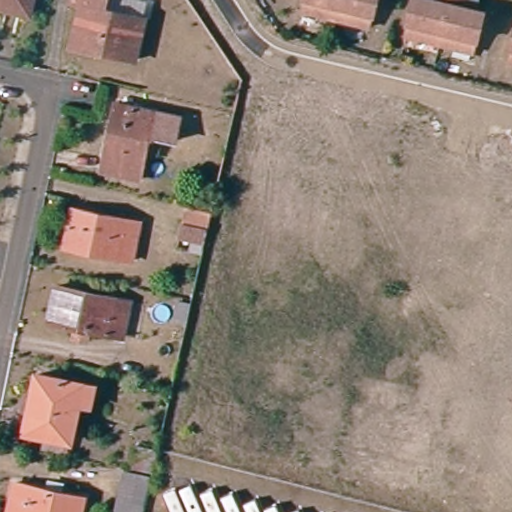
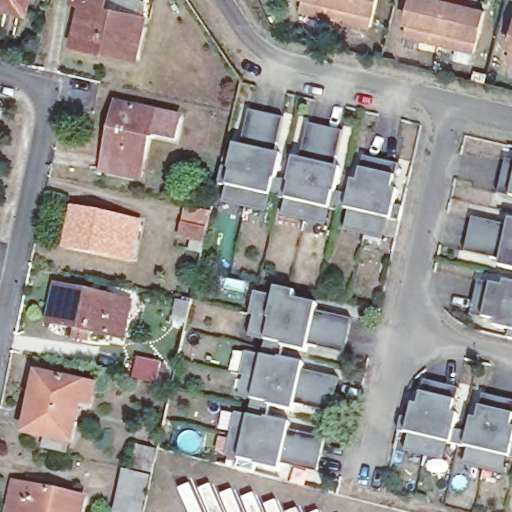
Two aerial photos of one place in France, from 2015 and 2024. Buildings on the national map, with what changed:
unchanged [(30,10),(0,3),(0,0),(32,0),(30,10)]
unchanged [(104,0),(143,10),(135,51),(80,38),(83,22),(79,21),(84,0),(105,0),(104,0)]
unchanged [(371,25),(303,9),(306,0),(378,0),(371,25)]
unchanged [(467,6),(487,11),(475,52),(406,34),(415,0),(469,0),(467,6)]
unchanged [(512,40),(512,60),(506,59),(512,40)]
unchanged [(181,112),(177,135),(150,130),(140,172),(104,163),(118,97),(181,112)]
new [(220,171),(226,173),(232,150),(238,151),(246,115),(264,119),(243,214),(220,209),(224,192),(216,190),(220,171)]
new [(264,119),(281,123),(273,159),(280,160),(274,184),(280,185),(276,204),(269,202),(265,219),(243,214),(264,119)]
new [(280,185),(286,186),(291,162),(298,164),(306,129),(323,132),(303,227),(280,222),(283,205),(276,204),(280,185)]
new [(323,132),(340,136),(332,171),(339,173),(334,196),(341,199),(337,214),(336,217),(329,215),(325,232),(303,227),(323,132)]
new [(341,199),(347,200),(351,185),(356,187),(362,161),(379,165),(362,240),(343,236),(347,216),(337,214),(341,199)]
new [(512,165),(512,184),(500,181),(504,164),(512,165)]
new [(379,165),(396,169),(390,194),(397,195),(393,210),(401,212),(398,226),(386,224),(381,245),(362,240),(379,165)]
new [(512,184),(512,201),(496,198),(500,181),(512,184)]
unchanged [(209,235),(183,229),(190,200),(215,205),(209,235)]
unchanged [(138,216),(130,253),(65,240),(73,202),(138,216)]
new [(507,230),(508,223),(512,224),(512,249),(467,239),(470,222),(507,230)]
new [(512,249),(512,274),(497,271),(498,265),(463,256),(467,239),(512,249)]
unchanged [(123,291),(121,302),(134,306),(129,329),(59,314),(66,280),(123,291)]
new [(502,291),(503,285),(512,287),(512,311),(473,302),(477,285),(502,291)]
new [(252,300),(271,305),(274,293),(294,297),(292,304),(315,309),(314,315),(350,324),(346,341),(251,321),(247,320),(252,300)]
new [(512,311),(512,344),(506,342),(508,335),(493,331),(494,326),(469,320),(473,302),(512,311)]
new [(251,321),(346,341),(342,358),(306,350),(305,357),(282,352),(281,357),(258,352),(260,345),(247,342),(251,321)]
new [(244,357),(257,360),(258,352),(281,357),(280,365),(302,369),(301,375),(337,383),(333,400),(243,382),(239,381),(244,357)]
unchanged [(21,424),(33,368),(70,376),(88,380),(84,397),(74,395),(64,433),(21,424)]
new [(243,382),(333,400),(329,417),(293,410),(291,416),(268,411),(267,417),(250,413),(252,405),(239,403),(243,382)]
new [(400,421),(408,423),(411,409),(417,410),(423,385),(440,389),(424,461),(404,456),(408,439),(397,436),(400,421)]
new [(440,389),(458,393),(452,418),(457,420),(454,434),(461,435),(457,450),(447,448),(443,465),(424,461),(440,389)]
new [(461,435),(467,437),(471,422),(477,424),(482,399),(499,403),(483,475),(463,470),(467,452),(457,450),(461,435)]
new [(512,406),(512,428),(511,432),(512,432),(512,463),(506,462),(502,479),(483,475),(499,403),(512,406)]
new [(235,419),(248,422),(250,413),(267,417),(265,423),(289,429),(287,435),(323,443),(320,461),(231,441),(235,419)]
unchanged [(122,464),(132,466),(137,438),(157,443),(145,512),(133,512),(117,505),(122,464)]
new [(231,441),(320,461),(316,478),(280,470),(278,477),(255,471),(253,478),(236,474),(238,465),(226,462),(231,441)]
unchanged [(82,512),(8,512),(14,486),(85,500),(82,512)]

